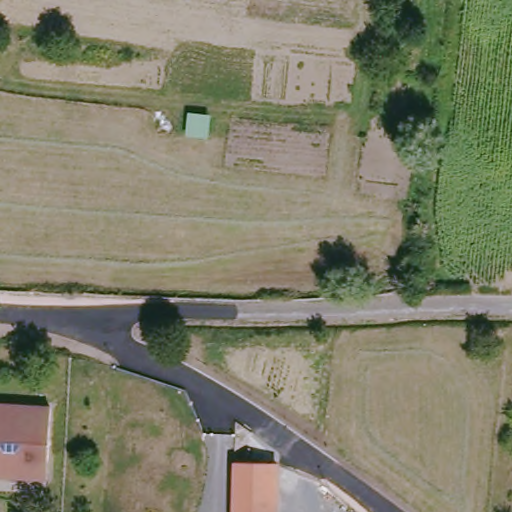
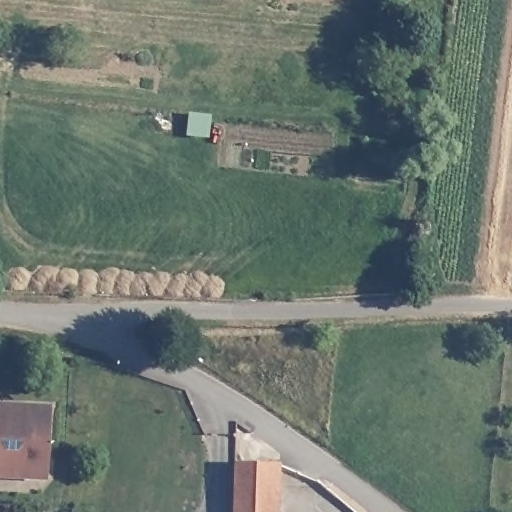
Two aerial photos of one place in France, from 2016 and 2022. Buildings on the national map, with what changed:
unchanged [(189,133),(192,114),(206,116),(204,135),(189,133)]
unchanged [(0,477),(0,405),(51,408),(48,455),(47,478),(29,478),(0,477)]
unchanged [(234,466),(276,468),(275,512),(233,512),(234,474),(234,466)]

